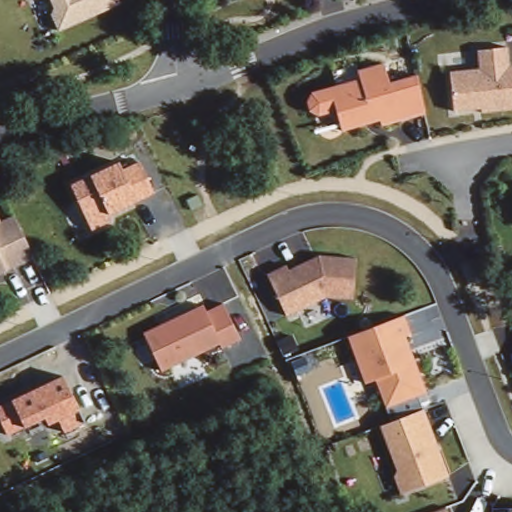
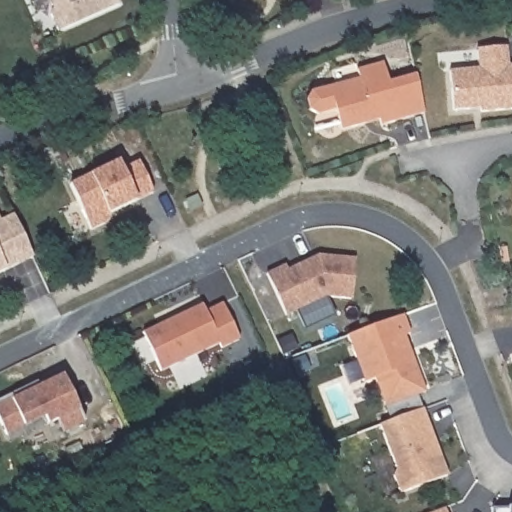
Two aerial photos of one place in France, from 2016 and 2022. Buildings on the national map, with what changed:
unchanged [(52,8),(49,0),(119,0),(120,4),(58,30),(49,10),(52,8)]
unchanged [(477,71),(475,52),(507,47),(508,69),(512,68),(512,112),(452,116),(448,73),(477,71)]
unchanged [(340,132),(332,119),(318,121),(310,117),(305,102),(310,93),(358,82),(356,72),(383,66),(388,83),(417,77),(427,112),(340,132)]
unchanged [(67,185),(116,162),(120,172),(139,166),(152,195),(105,216),(108,224),(90,234),(67,185)]
unchanged [(12,218),(32,258),(0,274),(0,222),(12,218)]
unchanged [(265,275),(313,257),(353,261),(350,305),(321,301),(286,321),(265,275)]
unchanged [(203,316),(220,308),(237,344),(219,353),(216,347),(162,373),(145,335),(200,309),(203,316)]
unchanged [(374,386),(359,387),(343,341),(405,320),(424,398),(384,412),(374,386)]
unchanged [(61,375),(86,425),(63,436),(57,420),(5,437),(0,427),(0,405),(61,375)]
unchanged [(374,432),(423,412),(448,479),(400,498),(374,432)]
unchanged [(446,510),(447,512),(439,512),(446,510)]

